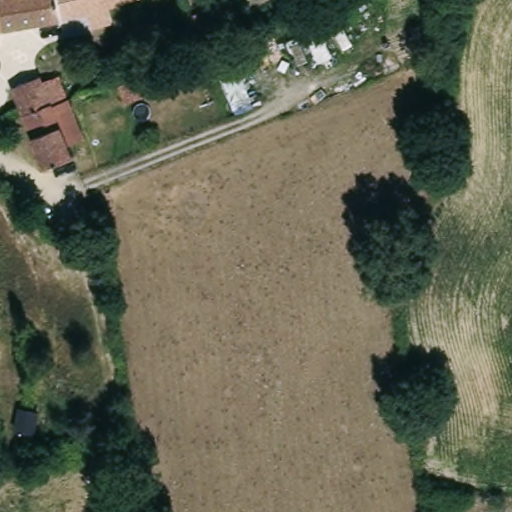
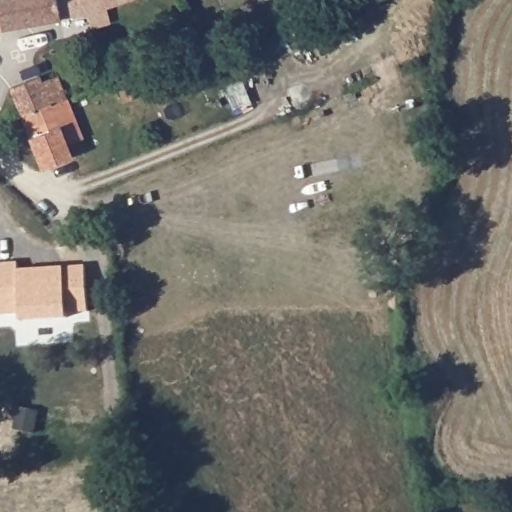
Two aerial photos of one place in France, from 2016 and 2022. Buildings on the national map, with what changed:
unchanged [(83,15),(0,29),(0,0),(132,0),(108,7),(112,22),(95,27),(91,12),(83,15)]
unchanged [(196,42),(189,21),(196,19),(194,13),(200,11),(209,37),(196,42)]
unchanged [(3,87),(33,75),(36,82),(52,76),(59,94),(59,97),(15,115),(3,87)]
unchanged [(68,117),(75,136),(60,142),(66,155),(36,167),(15,115),(59,97),(68,117)]
new [(14,265),(55,261),(80,259),(84,305),(63,306),(63,311),(17,315),(16,307),(0,309),(0,258),(13,257),(14,265)]
unchanged [(37,406),(33,425),(14,421),(18,402),(37,406)]

